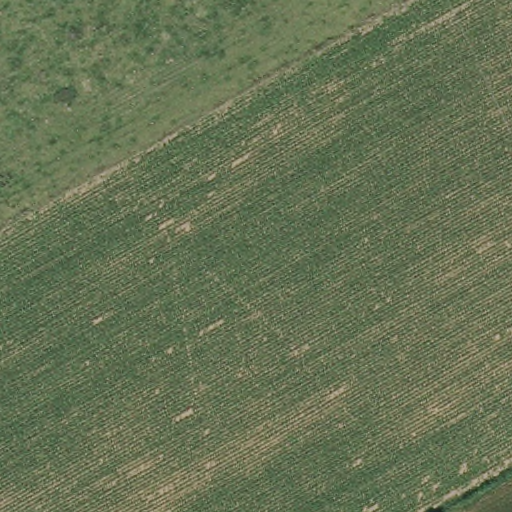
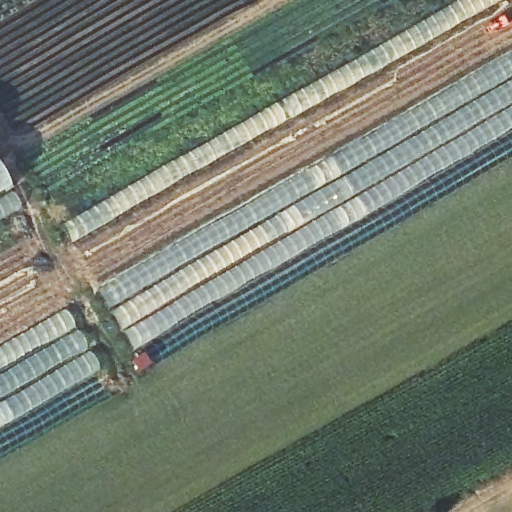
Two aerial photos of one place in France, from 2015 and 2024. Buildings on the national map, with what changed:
new [(73,242),(62,224),(464,0),(504,0),(73,242)]
new [(95,292),(512,57),(512,133),(133,354),(95,292)]
new [(8,190),(13,189),(24,208),(0,221),(0,177),(8,190)]
new [(102,370),(0,429),(0,349),(66,311),(102,370)]

